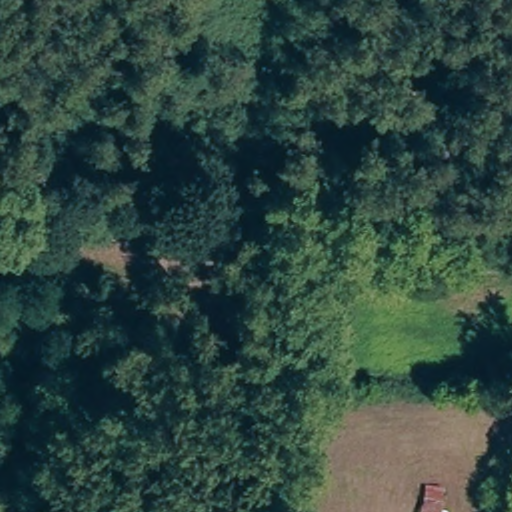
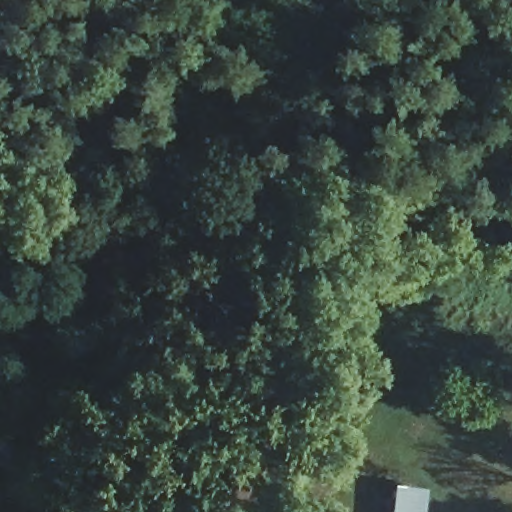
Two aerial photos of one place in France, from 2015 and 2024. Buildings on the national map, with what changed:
new [(390,485),(429,487),(426,512),(388,512),(390,485)]
demolished [(448,512),(432,512),(433,507),(448,511),(448,512)]

